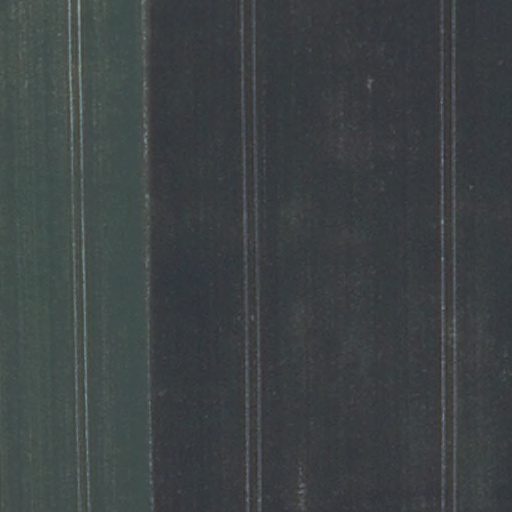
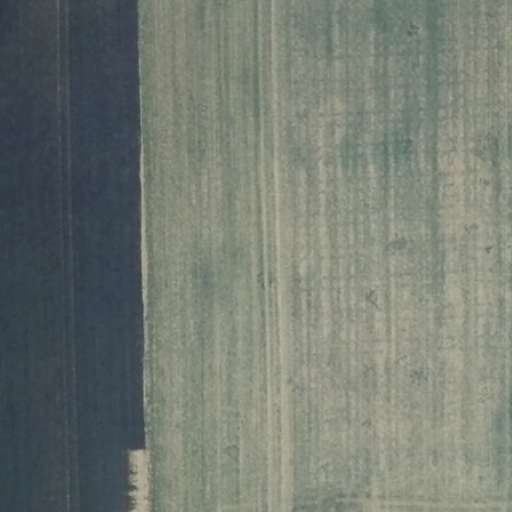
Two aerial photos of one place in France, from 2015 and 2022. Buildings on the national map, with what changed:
[]

